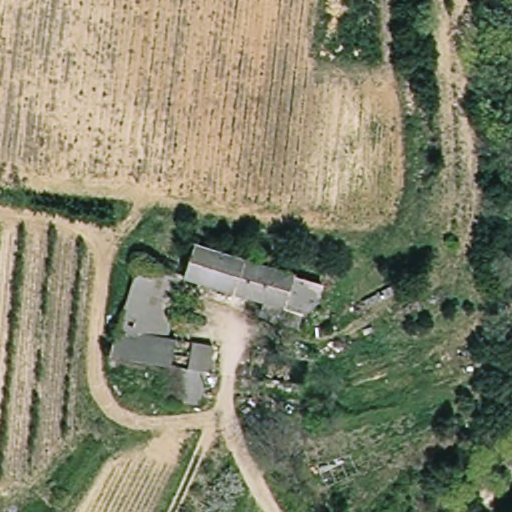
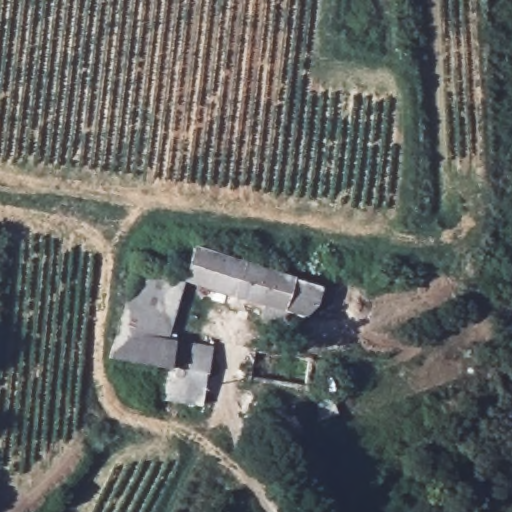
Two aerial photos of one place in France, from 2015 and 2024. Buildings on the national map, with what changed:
unchanged [(267,323),(272,307),(190,280),(203,246),(327,285),(320,307),(305,320),(298,335),(267,323)]
unchanged [(142,262),(189,276),(172,345),(124,335),(142,262)]
unchanged [(172,345),(167,368),(117,357),(124,335),(172,345)]
unchanged [(174,370),(175,363),(190,366),(194,341),(216,344),(207,407),(169,402),(174,370)]

